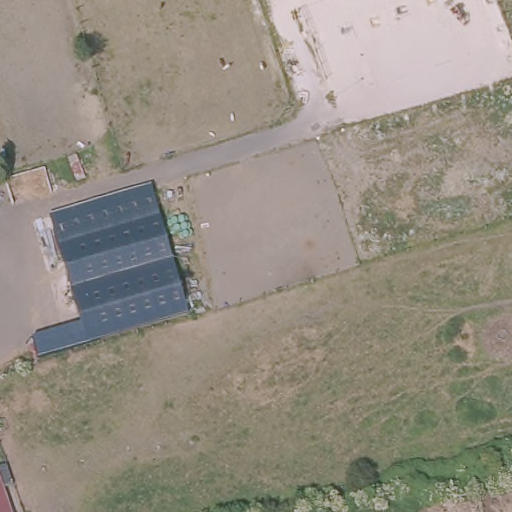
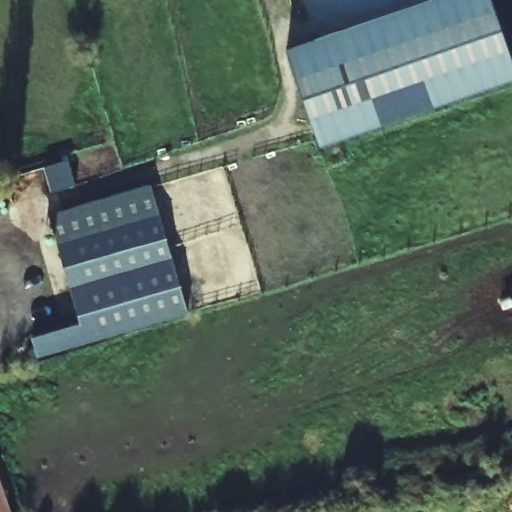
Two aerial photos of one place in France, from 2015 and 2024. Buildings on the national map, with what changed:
new [(286,49),(428,0),(493,0),(512,58),(512,79),(319,145),(286,49)]
unchanged [(153,184),(189,315),(38,357),(33,335),(79,321),(49,214),(153,184)]
unchanged [(13,482),(3,486),(13,512),(0,512),(0,461),(4,460),(13,482)]

